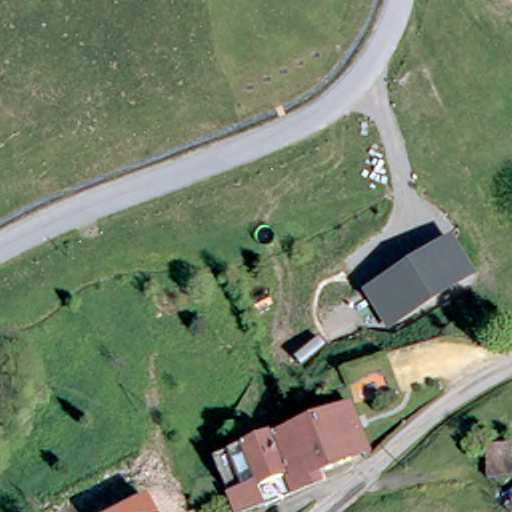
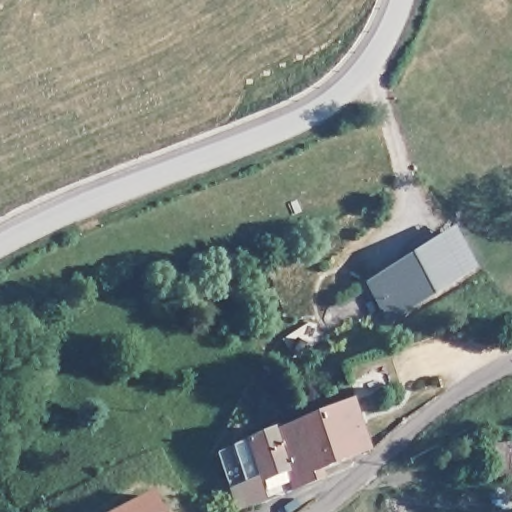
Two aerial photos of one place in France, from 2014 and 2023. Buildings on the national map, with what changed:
unchanged [(452,227),(476,266),(388,322),(361,283),(452,227)]
unchanged [(296,467),(284,432),(359,397),(382,447),(303,482),(296,467)]
unchanged [(256,512),(246,491),(259,483),(245,449),(284,432),(296,467),(269,479),(283,503),(266,512),(256,512)]
unchanged [(158,512),(110,512),(147,493),(158,512)]

